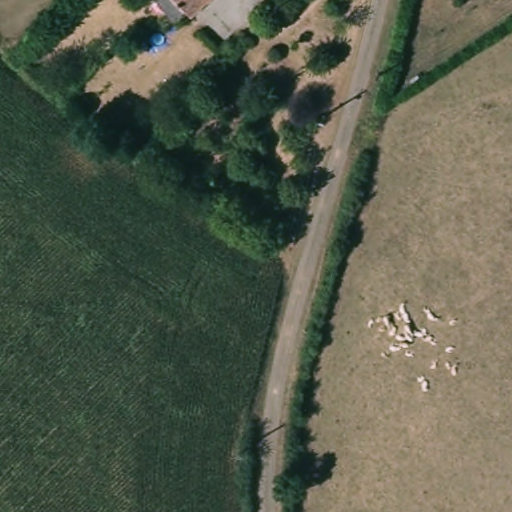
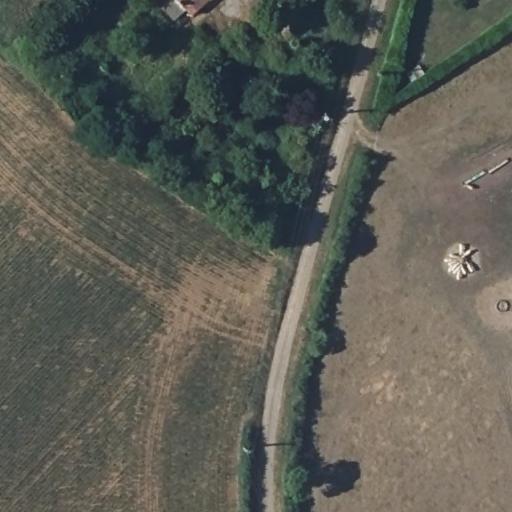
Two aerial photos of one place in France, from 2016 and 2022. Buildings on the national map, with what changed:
unchanged [(154,0),(210,0),(193,17),(187,11),(176,22),(154,0)]

